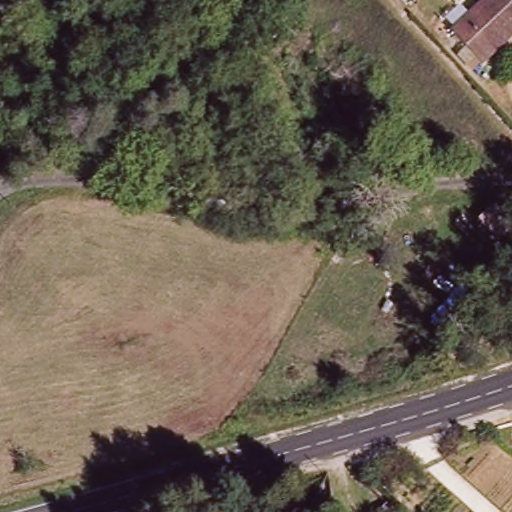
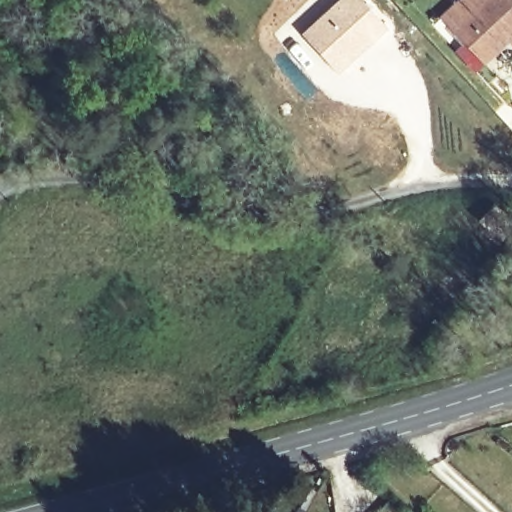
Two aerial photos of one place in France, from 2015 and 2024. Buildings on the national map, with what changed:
new [(361,0),(389,30),(338,75),(301,33),(337,0),(361,0)]
unchanged [(512,0),(512,31),(483,57),(440,16),(457,0),(512,0)]
unchanged [(479,221),(493,207),(511,224),(497,239),(479,221)]

